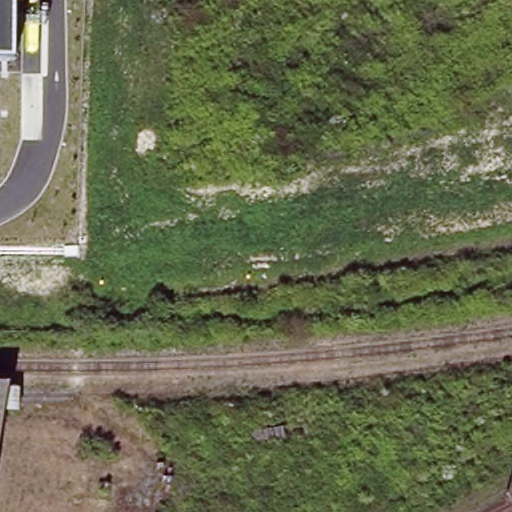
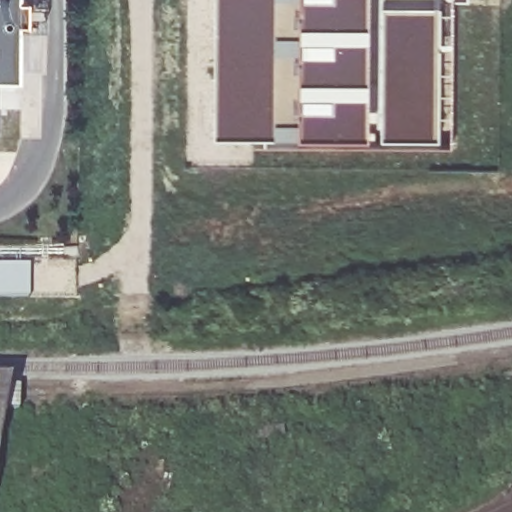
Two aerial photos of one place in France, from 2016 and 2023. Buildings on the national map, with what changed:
unchanged [(15,59),(0,59),(0,0),(16,0),(15,59)]
new [(215,0),(371,0),(369,132),(301,131),(216,130),(215,0)]
new [(382,4),(441,5),(440,138),(382,137),(382,4)]
unchanged [(0,434),(0,382),(9,382),(0,434)]

